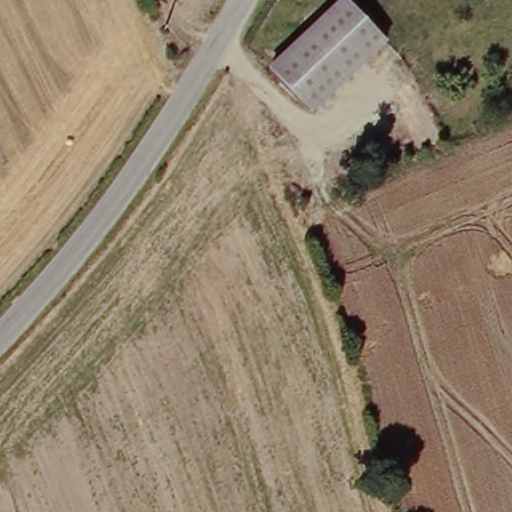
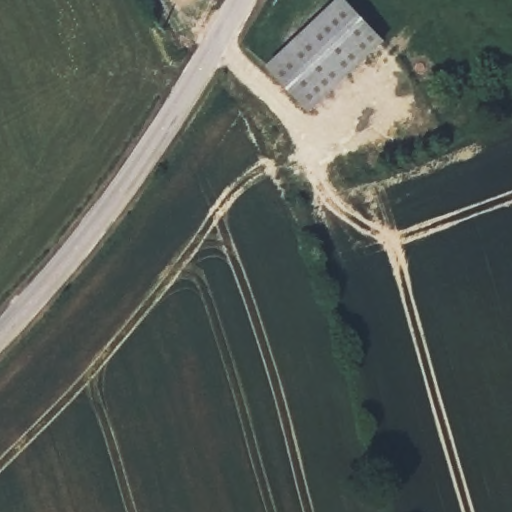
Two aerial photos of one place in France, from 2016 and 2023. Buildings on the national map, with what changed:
unchanged [(316,108),(274,66),(341,0),(350,0),(387,39),(316,108)]

